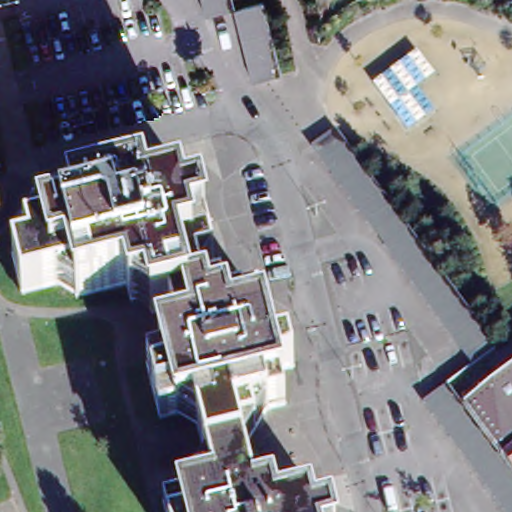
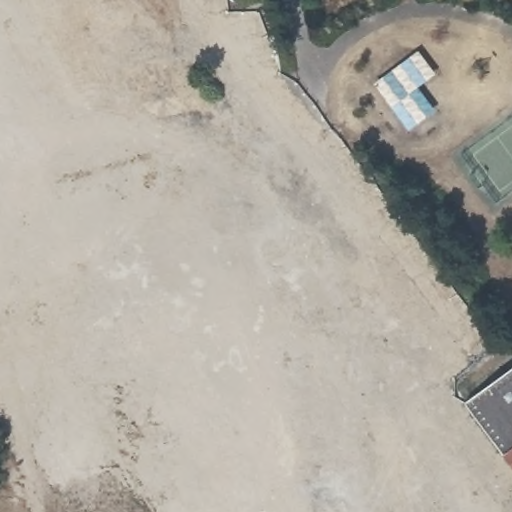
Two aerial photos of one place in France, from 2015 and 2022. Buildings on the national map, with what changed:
unchanged [(207,16),(203,0),(233,0),(236,9),(207,16)]
unchanged [(264,2),(283,76),(256,82),(254,82),(236,9),(264,2)]
unchanged [(438,74),(420,87),(437,111),(411,131),(376,84),(420,51),(438,74)]
unchanged [(500,346),(475,364),(313,146),(338,128),(500,346)]
demolished [(165,382),(152,331),(168,326),(164,309),(181,305),(173,274),(156,278),(152,261),(135,266),(131,250),(81,262),(77,246),(26,258),(17,222),(34,217),(30,200),(46,196),(42,180),(109,162),(105,146),(123,141),(127,158),(161,149),(165,167),(200,157),(218,228),(221,244),(226,261),(230,277),(262,269),(274,318),(291,314),(296,332),(279,337),(287,368),(253,377),(258,396),(239,400),(243,415),(210,423),(198,374),(166,382),(165,382)]
demolished [(1,175),(0,175),(0,173),(1,175)]
unchanged [(467,404),(512,371),(512,464),(505,455),(467,404)]
unchanged [(450,382),(512,466),(512,512),(508,512),(425,401),(450,382)]
demolished [(171,468),(204,460),(200,443),(215,440),(210,423),(243,415),(256,466),(273,462),(277,478),(310,471),(315,486),(331,482),(338,512),(181,512),(171,468)]

